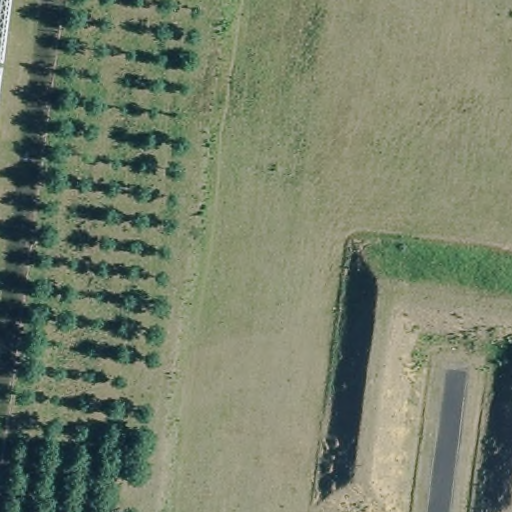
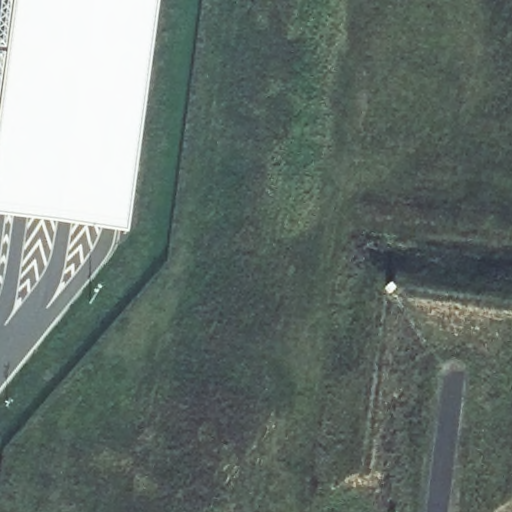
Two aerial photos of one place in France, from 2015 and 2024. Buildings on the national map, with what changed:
unchanged [(9,0),(0,65),(0,0),(9,0)]
new [(0,219),(0,93),(12,0),(158,0),(127,238),(0,219)]

